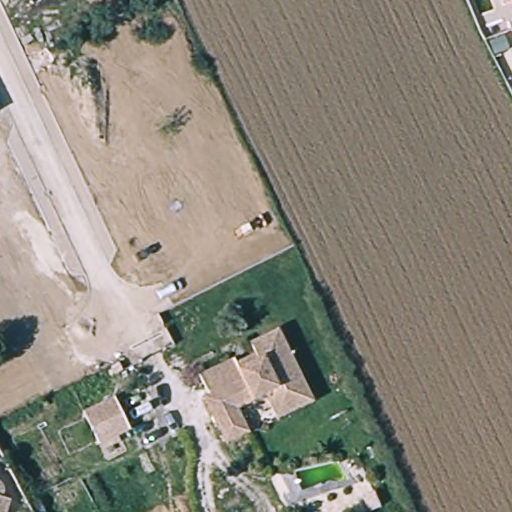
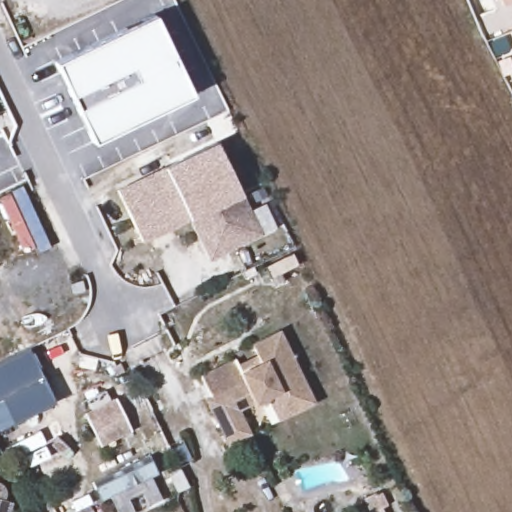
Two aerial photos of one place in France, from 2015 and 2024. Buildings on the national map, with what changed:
unchanged [(512,0),(512,3),(502,6),(500,0),(512,0)]
new [(192,95),(92,143),(54,62),(153,14),(192,95)]
new [(155,252),(149,240),(143,243),(118,191),(217,144),(261,235),(210,260),(190,220),(173,229),(178,240),(155,252)]
unchanged [(223,443),(218,431),(201,397),(206,394),(197,375),(232,357),(238,370),(257,361),(247,342),(276,328),(305,392),(309,401),(274,418),(263,395),(235,407),(240,420),(247,432),(223,443)]
new [(55,403),(0,430),(0,361),(28,347),(55,403)]
new [(117,397),(132,428),(100,443),(85,412),(117,397)]
new [(149,455),(158,473),(152,477),(162,501),(147,508),(139,492),(127,499),(133,512),(117,512),(109,497),(99,501),(92,482),(149,455)]
unchanged [(7,502),(3,512),(0,512),(0,500),(7,502)]

